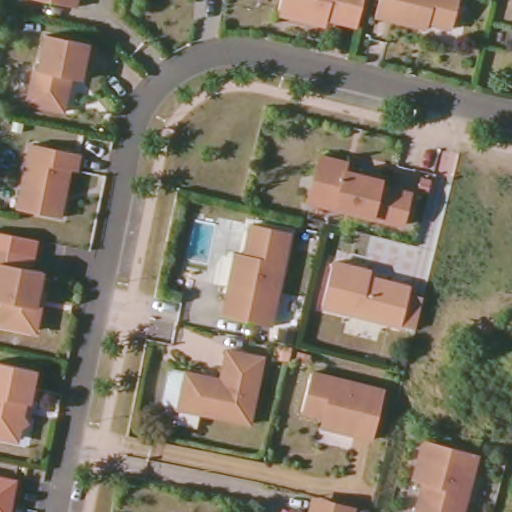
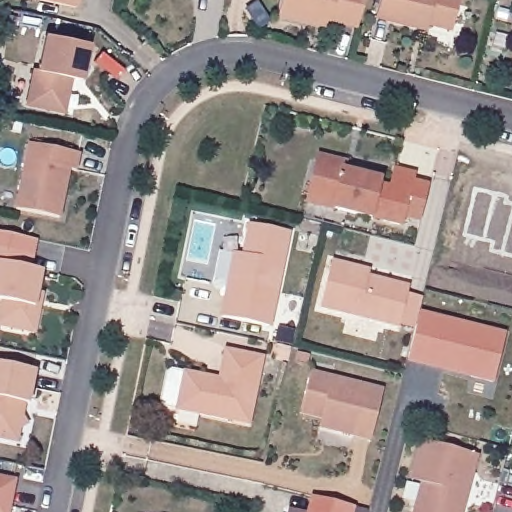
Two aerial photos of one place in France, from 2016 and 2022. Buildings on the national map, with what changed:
unchanged [(74,7),(35,0),(75,0),(74,7)]
unchanged [(357,26),(320,16),(318,23),(277,12),(280,0),(362,0),(357,26)]
unchanged [(450,27),(420,21),(419,27),(374,16),(378,0),(456,0),(450,27)]
unchanged [(90,44),(80,80),(71,78),(63,112),(25,104),(33,69),(37,70),(45,35),(90,44)]
unchanged [(79,152),(75,170),(70,169),(60,216),(16,207),(30,142),(79,152)]
unchanged [(333,207),(335,202),(315,197),(319,182),(314,174),(318,156),(346,162),(343,174),(352,176),(352,173),(380,180),(379,185),(409,193),(401,225),(382,220),(371,217),(333,207)]
unchanged [(290,231),(270,325),(222,316),(231,270),(242,262),(250,222),(290,231)]
unchanged [(35,272),(47,275),(40,310),(45,311),(41,330),(34,335),(3,328),(7,305),(0,303),(0,267),(0,251),(38,258),(35,272)]
unchanged [(415,325),(414,327),(400,323),(399,324),(320,305),(331,261),(362,268),(366,269),(365,274),(409,285),(407,292),(422,295),(415,325)]
new [(414,327),(415,325),(418,311),(507,332),(493,383),(408,362),(414,327)]
unchanged [(249,427),(177,413),(164,411),(161,405),(167,377),(172,373),(185,376),(209,381),(212,385),(220,387),(226,354),(263,362),(249,427)]
unchanged [(30,410),(23,408),(22,417),(30,430),(7,444),(0,442),(0,368),(36,376),(30,410)]
unchanged [(383,388),(371,437),(337,428),(331,418),(300,411),(310,370),(383,388)]
unchanged [(472,477),(460,474),(453,499),(465,502),(463,512),(415,512),(422,485),(412,482),(413,474),(422,442),(477,456),(472,477)]
unchanged [(0,512),(0,477),(18,481),(12,512),(0,512)]
unchanged [(354,512),(310,512),(313,499),(355,509),(354,512)]

